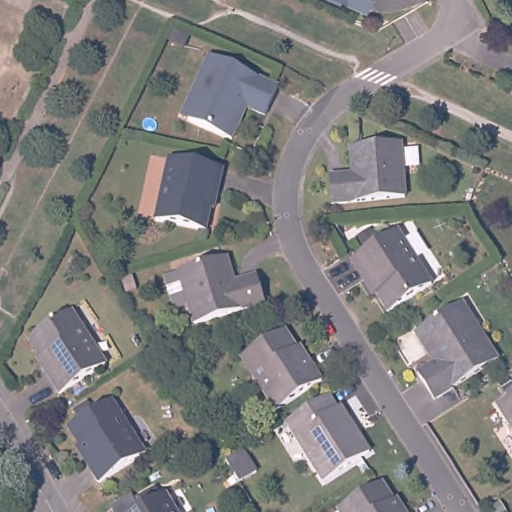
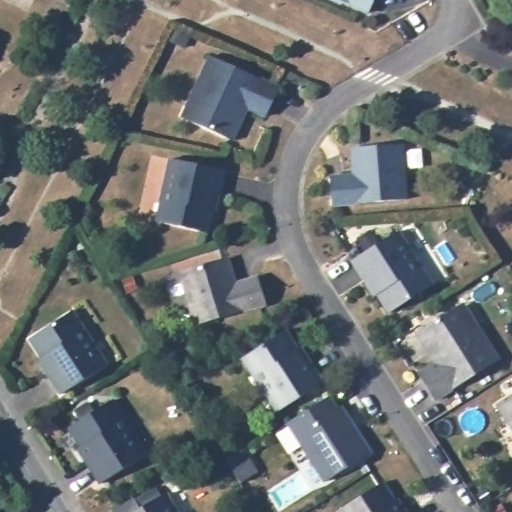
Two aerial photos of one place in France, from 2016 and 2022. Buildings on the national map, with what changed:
unchanged [(334,0),(373,0),(367,15),(334,0)]
unchanged [(210,58),(278,89),(267,119),(247,110),(234,142),(192,124),(183,120),(195,92),(210,58)]
unchanged [(362,175),(360,147),(405,144),(410,198),(335,206),(332,177),(356,175),(362,175)]
unchanged [(205,234),(154,222),(168,160),(221,172),(217,198),(211,197),(209,212),(205,234)]
unchanged [(352,267),(397,237),(433,291),(391,317),(379,300),(370,285),(365,287),(352,267)]
unchanged [(238,286),(243,284),(264,277),(273,304),(203,327),(197,309),(185,313),(174,280),(186,276),(230,262),(238,286)]
unchanged [(437,406),(420,378),(437,368),(418,338),(457,314),(466,308),(481,332),(502,365),(437,406)]
unchanged [(28,340),(69,312),(105,363),(59,395),(45,373),(49,371),(40,358),(28,340)]
unchanged [(307,364),(312,361),(325,382),(278,411),(245,359),(287,332),(298,351),(307,364)]
unchanged [(495,405),(512,394),(512,432),(495,405)]
unchanged [(327,397),(333,408),(347,431),(351,428),(367,453),(321,482),(284,425),(327,397)]
unchanged [(69,428),(112,402),(144,455),(98,483),(85,462),(89,460),(81,447),(69,428)]
unchanged [(398,512),(345,512),(383,488),(394,506),(398,512)]
unchanged [(165,493),(176,512),(132,512),(165,493)]

